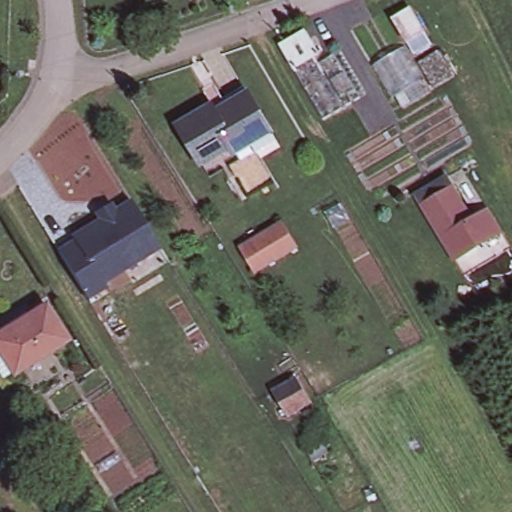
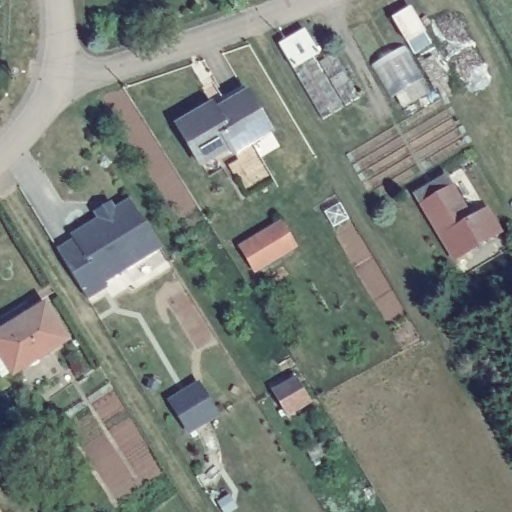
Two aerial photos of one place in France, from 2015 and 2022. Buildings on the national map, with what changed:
unchanged [(408,38),(395,14),(412,4),(425,28),(408,38)]
unchanged [(280,44),(307,27),(325,55),(337,50),(361,96),(319,117),(280,44)]
unchanged [(212,111),(227,102),(224,97),(243,85),(266,124),(250,135),(252,139),(234,148),(230,142),(200,161),(174,119),(206,101),(212,111)]
unchanged [(470,224),(485,213),(500,237),(454,264),(417,199),(446,181),(470,224)]
unchanged [(100,281),(103,285),(82,298),(51,249),(70,236),(130,197),(160,246),(100,281)]
unchanged [(292,245),(255,268),(242,247),(279,224),(292,245)]
unchanged [(12,375),(0,358),(0,332),(44,305),(67,341),(12,375)]
unchanged [(307,399),(285,412),(271,390),(294,377),(307,399)]
new [(199,384),(217,415),(189,432),(170,402),(199,384)]
unchanged [(67,436),(47,448),(35,430),(55,418),(67,436)]

